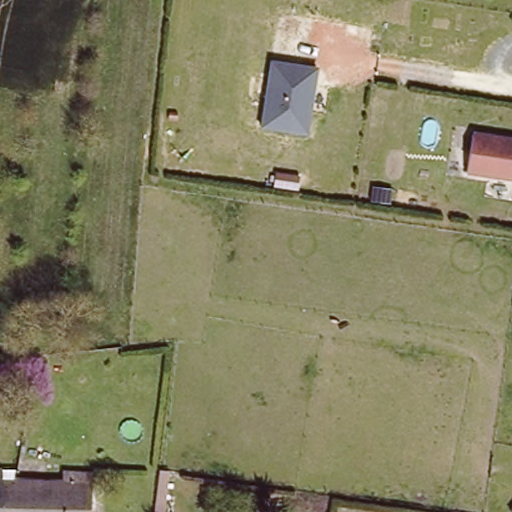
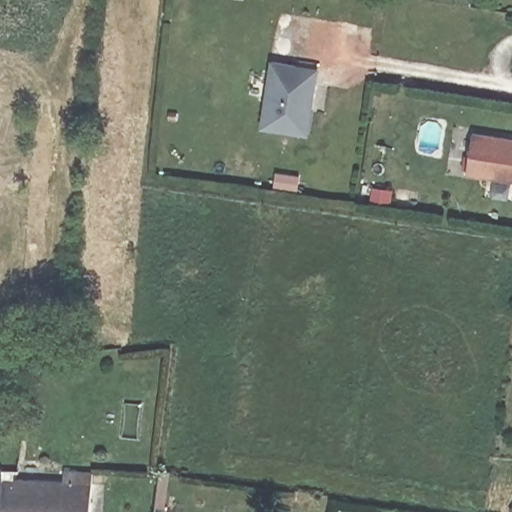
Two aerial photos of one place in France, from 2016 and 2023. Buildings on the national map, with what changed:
unchanged [(318,67),(308,135),(260,127),(268,61),(318,67)]
unchanged [(512,137),(512,180),(467,172),(472,132),(512,137)]
unchanged [(92,512),(0,512),(0,502),(0,472),(2,472),(1,487),(12,488),(60,488),(60,473),(92,473),(92,512)]

